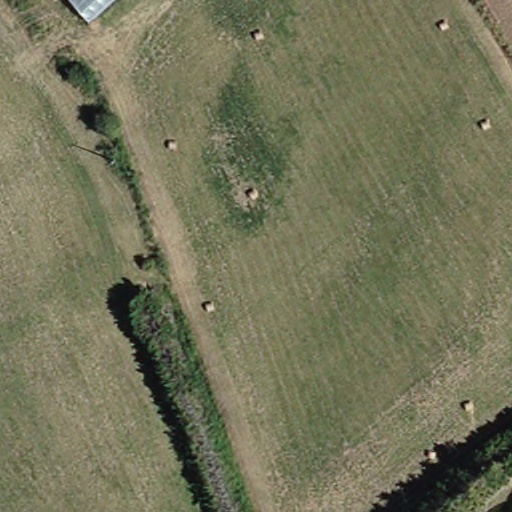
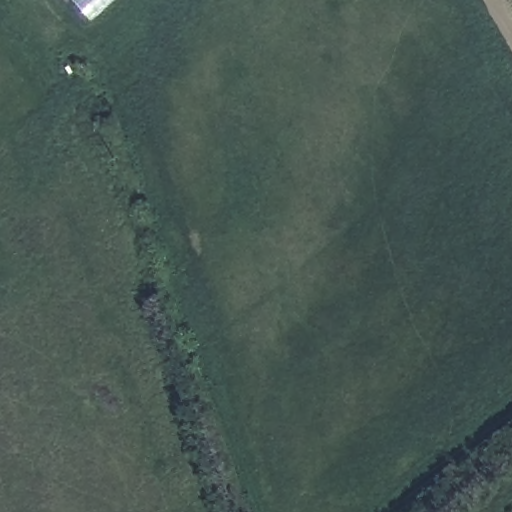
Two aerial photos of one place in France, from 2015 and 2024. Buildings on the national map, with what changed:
unchanged [(77,0),(118,0),(95,21),(77,0)]

